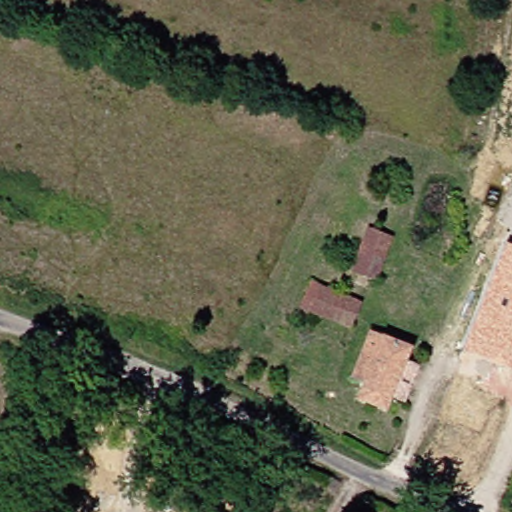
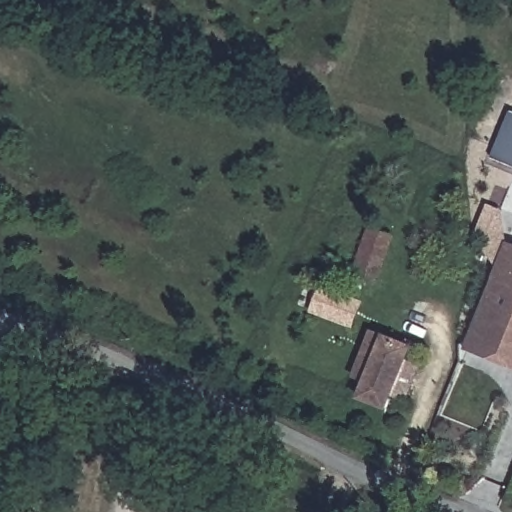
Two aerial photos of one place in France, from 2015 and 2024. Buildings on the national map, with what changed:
new [(511,110),(512,111),(512,166),(492,158),(511,110)]
unchanged [(364,226),(388,235),(367,288),(351,282),(354,274),(347,270),(364,226)]
unchanged [(512,363),(451,339),(445,337),(455,312),(456,312),(471,318),(500,240),(512,244),(512,363)]
unchanged [(358,309),(348,337),(301,319),(310,292),(358,309)]
unchanged [(397,406),(387,402),(382,414),(357,403),(362,387),(350,383),(367,337),(380,340),(407,351),(403,363),(414,368),(397,406)]
unchanged [(120,392),(117,411),(95,403),(99,387),(120,392)]

